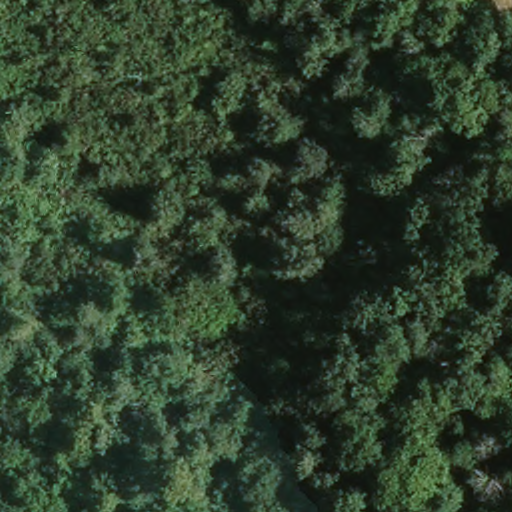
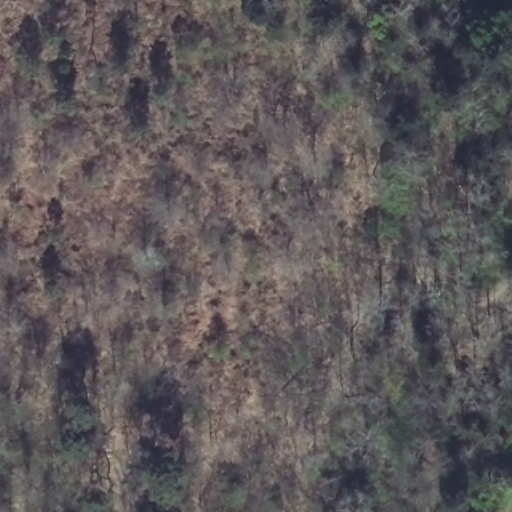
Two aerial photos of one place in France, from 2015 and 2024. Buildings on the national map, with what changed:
[]

